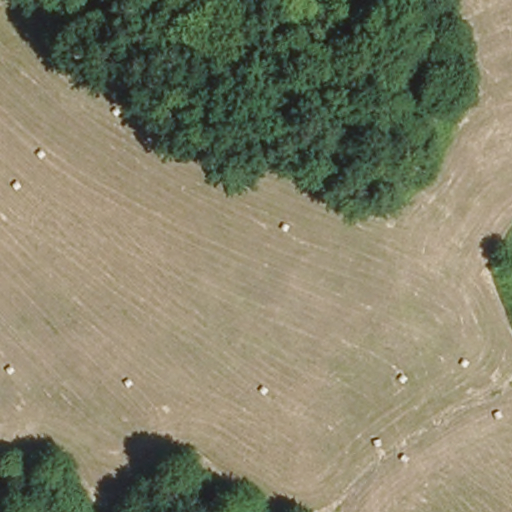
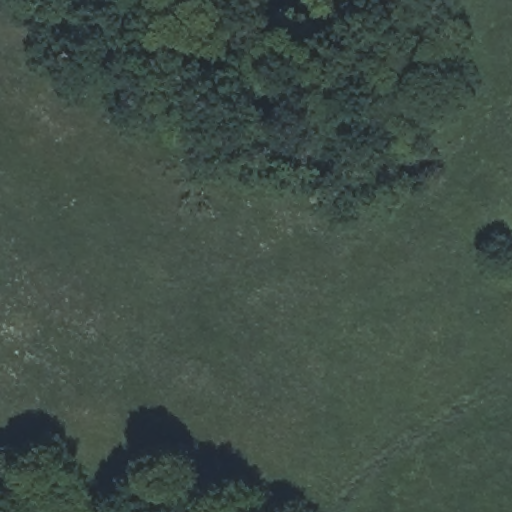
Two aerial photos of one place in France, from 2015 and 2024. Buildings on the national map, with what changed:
[]

